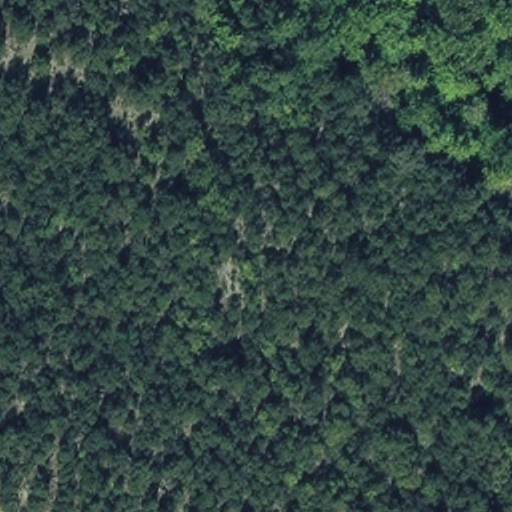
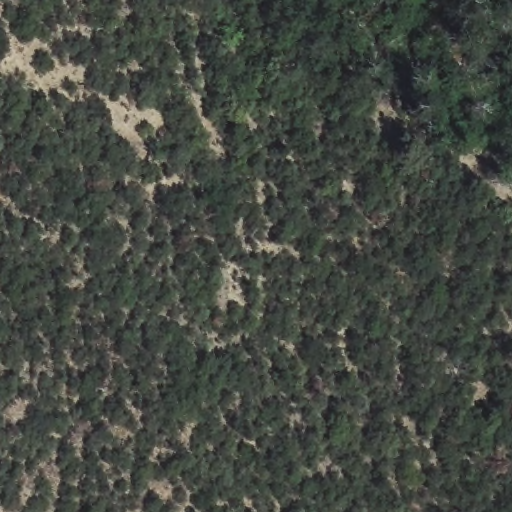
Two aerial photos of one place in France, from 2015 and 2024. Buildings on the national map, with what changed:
[]

